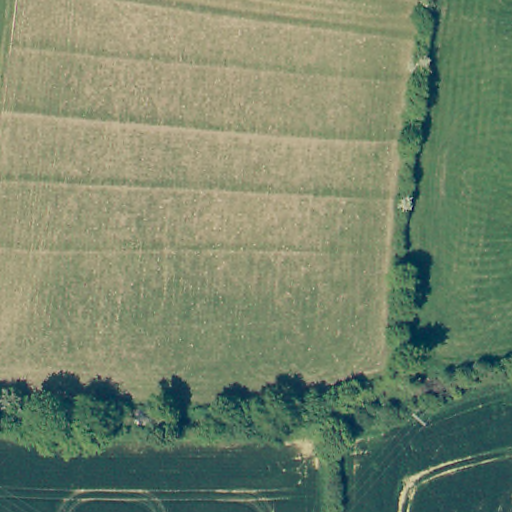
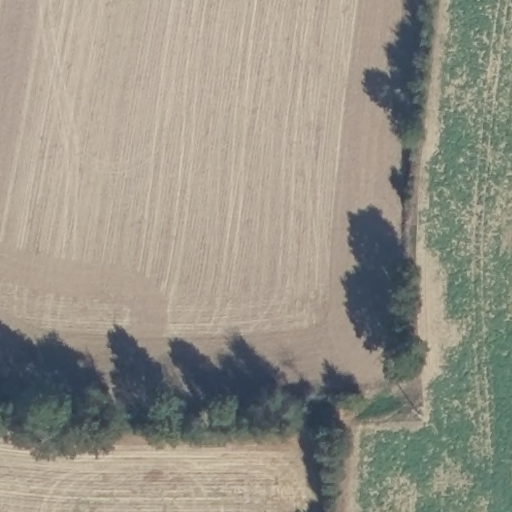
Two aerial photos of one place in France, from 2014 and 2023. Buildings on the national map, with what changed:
[]

